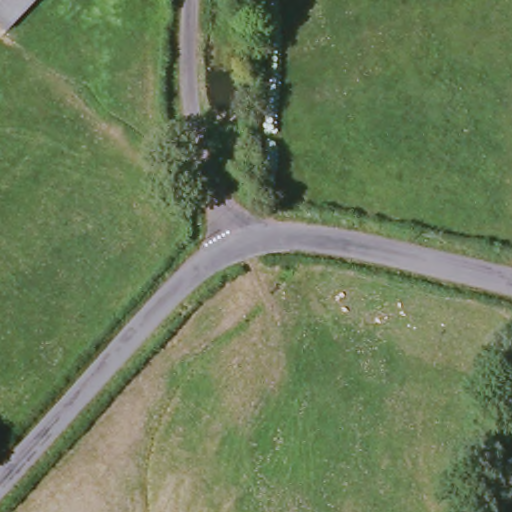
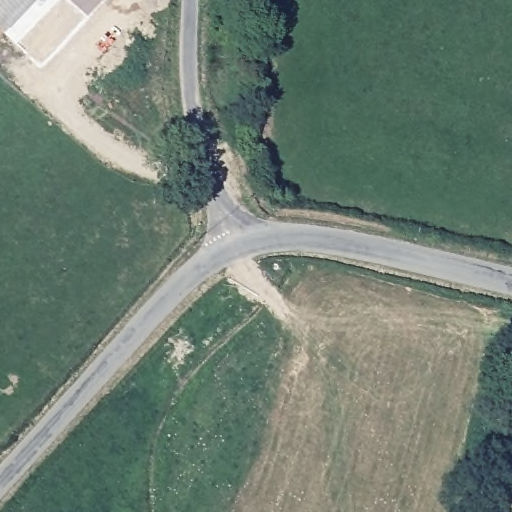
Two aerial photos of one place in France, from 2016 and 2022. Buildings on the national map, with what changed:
unchanged [(0,0),(35,0),(4,33),(0,29),(0,0)]
new [(35,0),(104,0),(40,67),(4,33),(35,0)]

